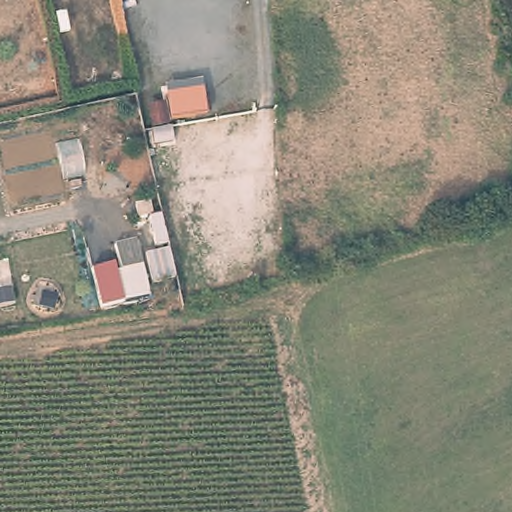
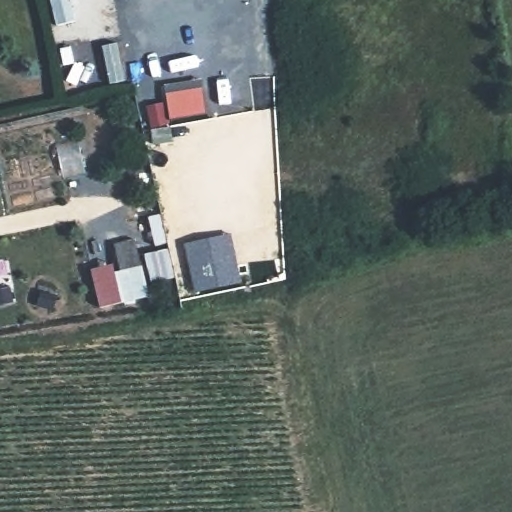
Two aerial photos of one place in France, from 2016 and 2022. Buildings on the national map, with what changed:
new [(184,241),(231,233),(241,283),(195,292),(184,241)]
unchanged [(113,273),(120,270),(112,244),(135,239),(149,296),(120,303),(113,273)]

